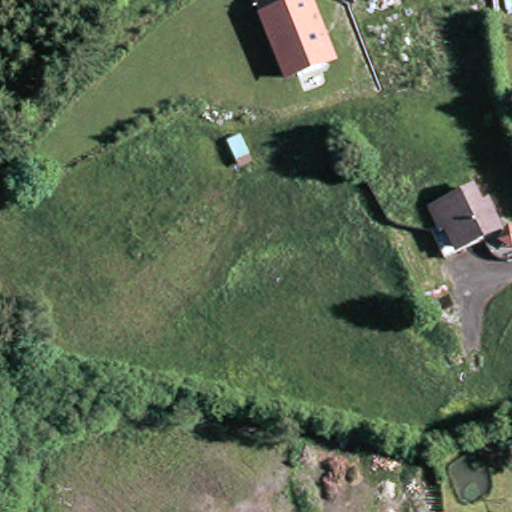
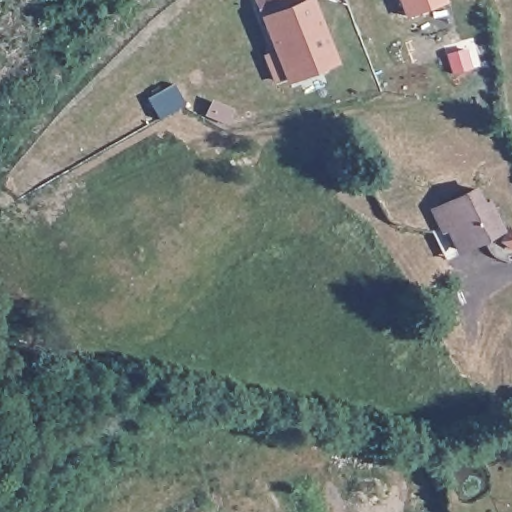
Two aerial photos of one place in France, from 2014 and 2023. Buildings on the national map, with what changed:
unchanged [(255,0),(295,0),(297,5),(310,0),(334,64),(285,83),(262,21),(255,0)]
new [(400,0),(444,0),(407,15),(400,0)]
unchanged [(497,230),(444,249),(434,222),(442,219),(437,205),(482,189),(497,230)]

